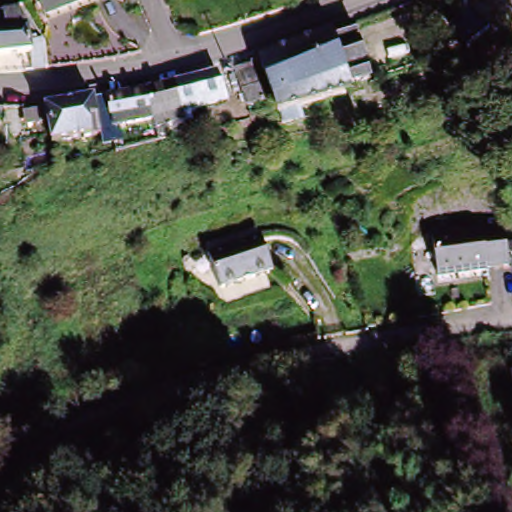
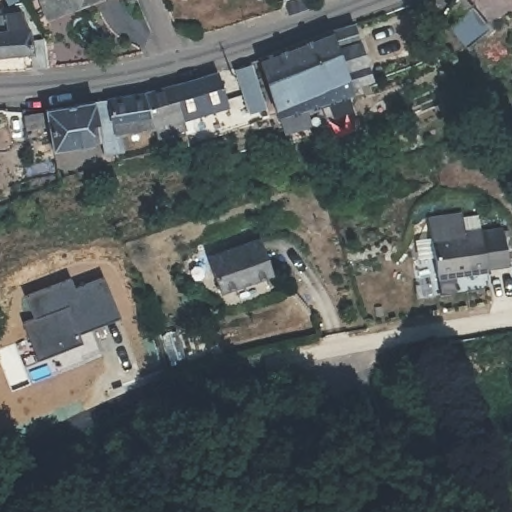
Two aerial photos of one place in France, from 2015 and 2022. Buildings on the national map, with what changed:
unchanged [(40,0),(95,0),(46,18),(40,0)]
unchanged [(34,43),(36,54),(0,58),(0,32),(9,31),(6,13),(27,11),(42,42),(34,43)]
unchanged [(455,26),(480,13),(489,30),(462,43),(455,26)]
unchanged [(373,79),(350,87),(352,95),(298,112),(300,121),(282,127),(255,60),(351,26),(373,79)]
unchanged [(246,64),(266,119),(252,124),(232,68),(246,64)]
unchanged [(231,109),(187,125),(110,143),(90,152),(49,152),(44,108),(100,96),(101,96),(216,67),(231,109)]
unchanged [(493,269),(493,274),(444,278),(440,237),(485,232),(485,237),(508,235),(511,268),(493,269)]
unchanged [(256,241),(270,277),(219,295),(206,258),(256,241)]
new [(33,321),(24,301),(69,281),(73,290),(101,277),(119,315),(79,333),(82,343),(39,362),(23,327),(33,321)]

